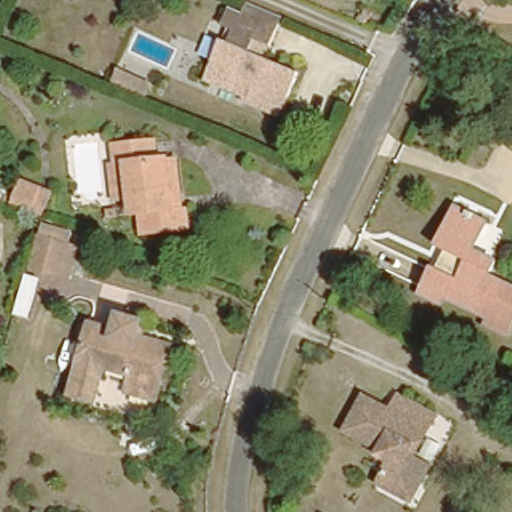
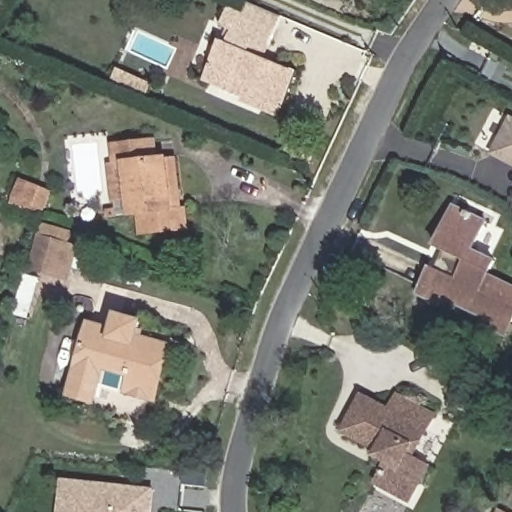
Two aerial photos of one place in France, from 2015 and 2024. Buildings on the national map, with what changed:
unchanged [(255,39),(250,50),(299,75),(283,112),(265,104),(263,109),(206,81),(225,40),(238,45),(244,34),(243,34),(219,21),(226,5),(227,6),(243,13),(247,0),(281,15),(276,29),(268,45),(255,39)]
unchanged [(103,72),(136,87),(130,96),(98,81),(103,72)]
demolished [(512,141),(488,127),(500,108),(512,115),(512,141)]
new [(511,119),(512,119),(512,164),(493,154),(511,119)]
unchanged [(123,164),(116,165),(115,164),(111,145),(149,137),(153,159),(164,156),(172,195),(176,194),(178,204),(183,204),(185,222),(170,225),(144,230),(141,231),(137,212),(132,213),(123,164)]
unchanged [(21,175),(51,190),(40,212),(10,196),(21,175)]
unchanged [(438,261),(446,246),(435,240),(452,201),(483,216),(471,242),(496,256),(488,270),(512,283),(512,317),(504,332),(497,330),(483,321),(487,313),(454,297),(443,292),(441,298),(418,287),(433,258),(438,261)]
unchanged [(40,229),(69,239),(59,271),(30,261),(40,229)]
unchanged [(64,397),(82,335),(106,342),(113,320),(135,326),(129,348),(163,359),(148,402),(121,392),(123,387),(96,379),(87,405),(64,397)]
unchanged [(387,411),(397,395),(433,416),(407,459),(424,470),(406,500),(375,480),(384,466),(384,465),(373,458),(376,453),(342,431),(363,398),(387,411)]
new [(131,485),(156,489),(154,504),(154,512),(63,512),(66,479),(131,485)]

